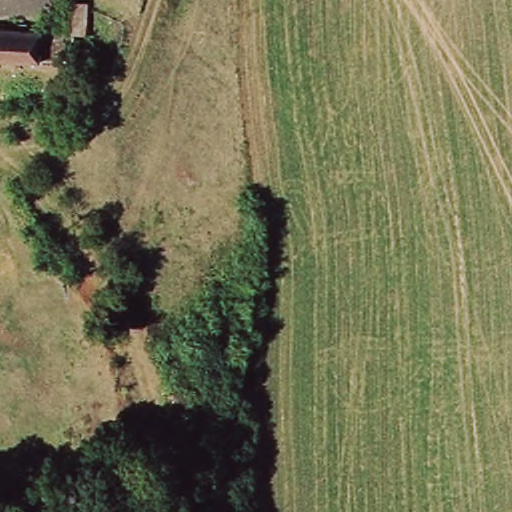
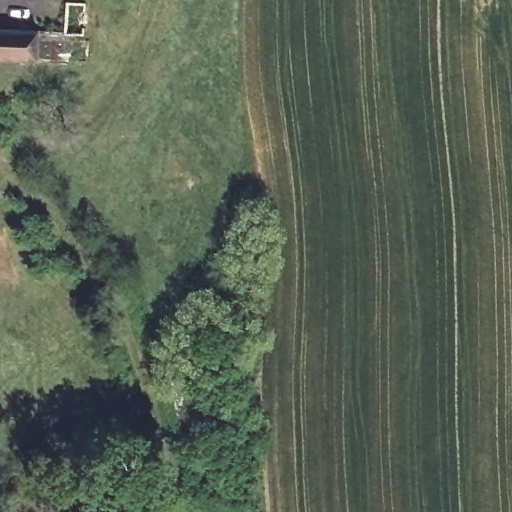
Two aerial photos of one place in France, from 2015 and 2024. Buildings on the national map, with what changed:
unchanged [(0,25),(41,27),(67,31),(67,3),(95,5),(87,66),(40,67),(0,65),(0,25)]

